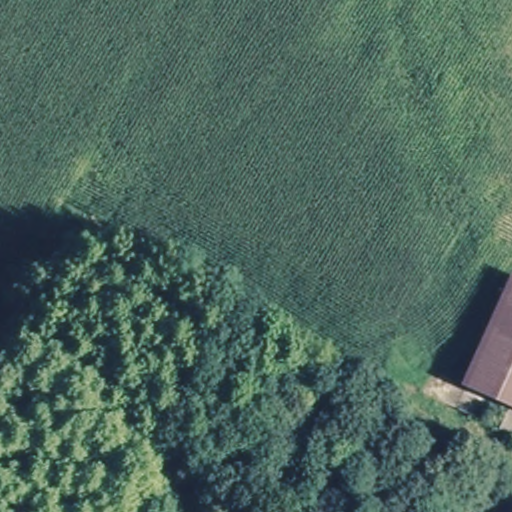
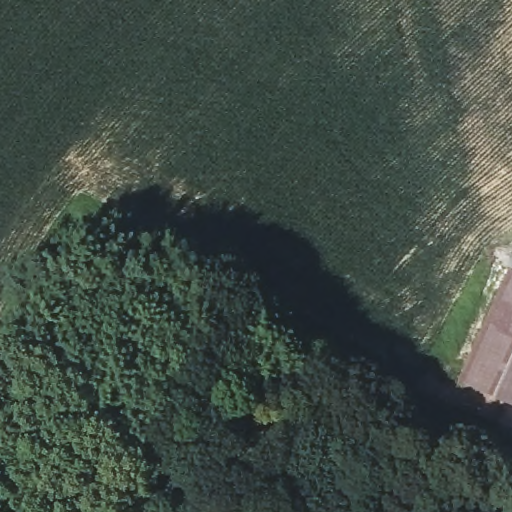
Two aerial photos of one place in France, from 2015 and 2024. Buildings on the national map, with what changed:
unchanged [(508,263),(512,264),(512,396),(460,373),(508,263)]

